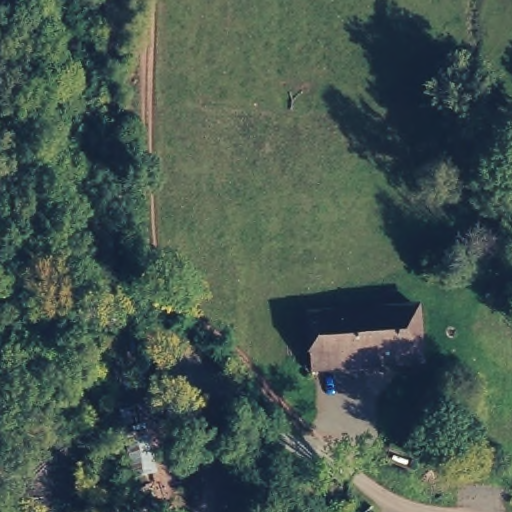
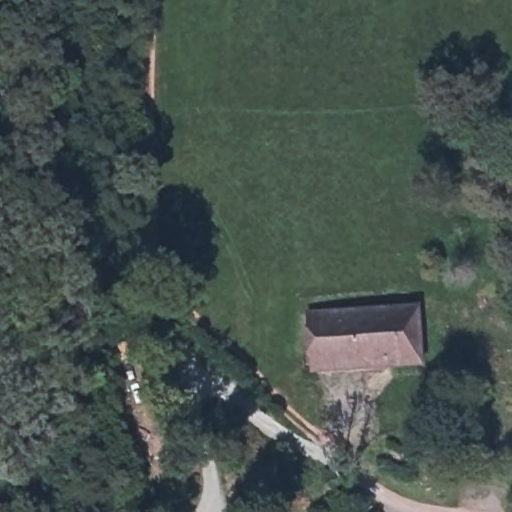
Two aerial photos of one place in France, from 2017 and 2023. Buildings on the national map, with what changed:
unchanged [(312,358),(310,312),(417,303),(420,360),(375,363),(313,367),(312,358)]

